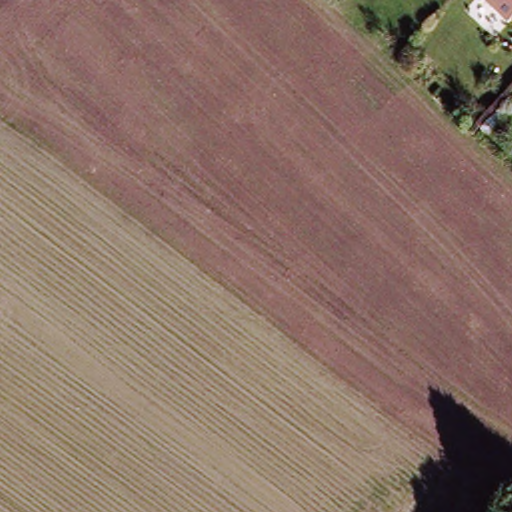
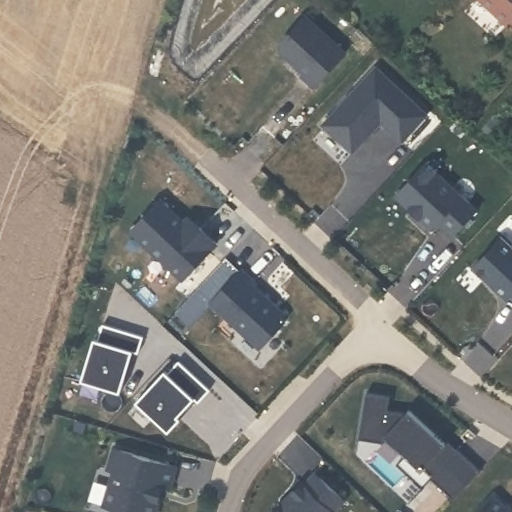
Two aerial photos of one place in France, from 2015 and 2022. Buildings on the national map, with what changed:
unchanged [(502,22),(476,0),(512,0),(512,25),(505,18),(502,22)]
new [(309,21),(349,56),(316,92),(304,81),(308,77),(284,56),(284,49),(309,21)]
new [(376,69),(428,116),(404,143),(382,123),(353,155),(323,127),(376,69)]
new [(431,168),(482,215),(459,241),(444,227),(437,235),(401,201),(431,168)]
new [(161,203),(181,221),(177,225),(188,235),(196,226),(213,242),(206,250),(218,261),(197,285),(184,273),(181,278),(133,233),(161,203)]
new [(512,248),(512,305),(478,273),(507,243),(512,248)]
new [(243,272),(256,283),(253,286),(289,318),(289,324),(264,352),(213,304),(243,272)]
new [(98,345),(102,346),(107,331),(147,343),(142,360),(137,358),(125,398),(86,386),(98,345)]
new [(169,377),(172,379),(183,367),(214,396),(203,409),(198,405),(181,423),(184,425),(173,438),(141,408),(169,377)]
new [(388,440),(366,436),(372,398),(396,402),(393,416),(412,419),(415,416),(452,450),(454,447),(463,455),(486,477),(459,506),(436,484),(428,492),(404,470),(412,462),(388,440)]
new [(112,476),(118,454),(179,473),(171,494),(163,491),(158,505),(161,505),(159,512),(108,512),(118,477),(112,476)]
new [(295,500),(308,488),(310,490),(321,479),(350,508),(346,512),(288,512),(297,503),(295,500)]
new [(500,512),(491,512),(494,507),(500,512)]
new [(288,512),(283,512),(286,509),(288,512)]

